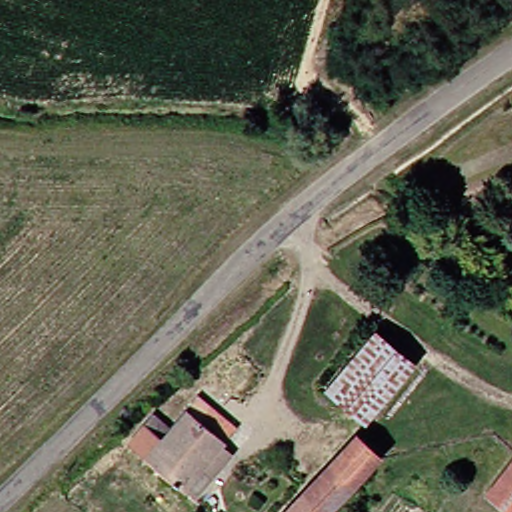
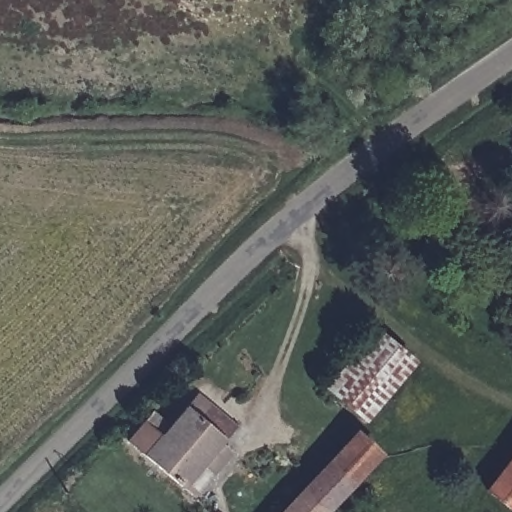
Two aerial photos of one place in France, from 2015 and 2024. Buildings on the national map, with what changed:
unchanged [(369,328),(407,362),(357,418),(316,385),(369,328)]
unchanged [(203,377),(194,370),(201,364),(198,361),(209,350),(220,360),(203,377)]
unchanged [(149,410),(161,422),(179,402),(191,415),(204,402),(230,426),(214,442),(224,452),(183,498),(121,438),(149,410)]
unchanged [(374,448),(315,512),(280,512),(357,430),(374,448)]
unchanged [(512,450),(512,506),(509,508),(483,485),(512,450)]
unchanged [(228,512),(215,512),(221,506),(228,512)]

